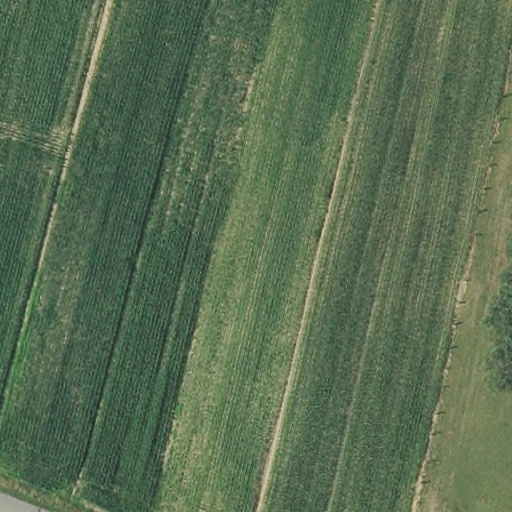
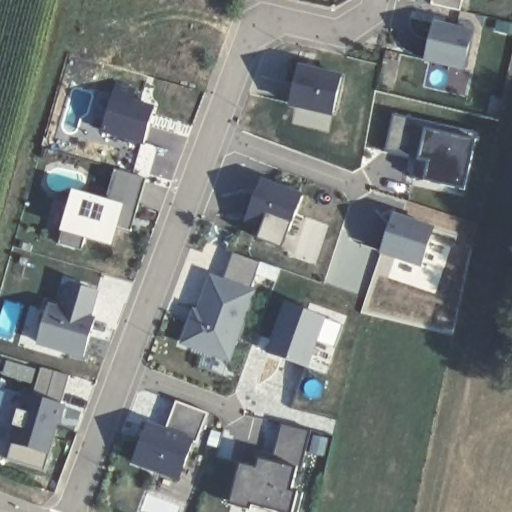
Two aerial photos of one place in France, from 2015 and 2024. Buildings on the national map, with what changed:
new [(434,22),(472,30),(463,68),(424,59),(434,22)]
new [(329,113),(288,102),(298,67),(341,77),(329,113)]
new [(144,145),(101,134),(115,84),(139,90),(136,100),(157,106),(144,145)]
new [(464,190),(416,179),(420,159),(386,151),(394,114),(478,133),(464,190)]
new [(129,232),(115,227),(109,246),(84,238),(80,249),(60,243),(63,231),(60,231),(73,190),(106,200),(116,169),(146,178),(129,232)]
new [(293,234),(272,228),(271,232),(241,221),(256,176),(308,194),(293,234)]
new [(434,227),(419,268),(378,255),(392,214),(434,227)]
new [(222,279),(232,253),(259,261),(248,286),(256,288),(228,363),(179,346),(191,308),(194,310),(206,274),(222,279)]
new [(91,317),(97,319),(83,359),(36,345),(49,303),(59,305),(67,282),(99,291),(91,317)]
new [(283,302),(343,324),(333,347),(317,342),(307,368),(264,350),(283,302)]
new [(50,453),(7,442),(23,393),(66,405),(50,453)]
new [(196,444),(193,443),(178,480),(132,464),(148,421),(165,428),(176,401),(208,413),(196,444)]
new [(298,469),(293,492),(301,495),(297,512),(277,512),(251,505),(249,511),(231,505),(242,464),(253,467),(256,452),(273,456),(282,425),(311,432),(301,470),(298,469)]

